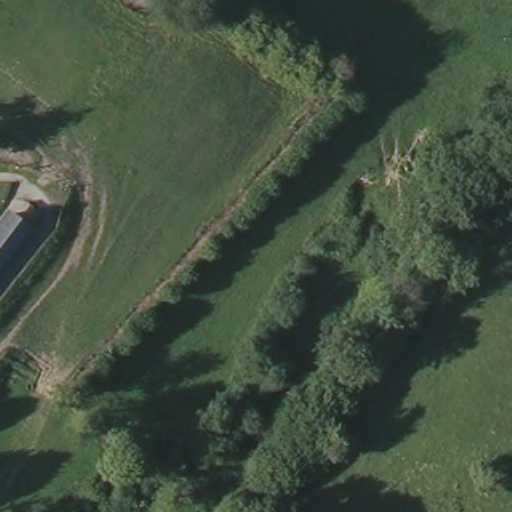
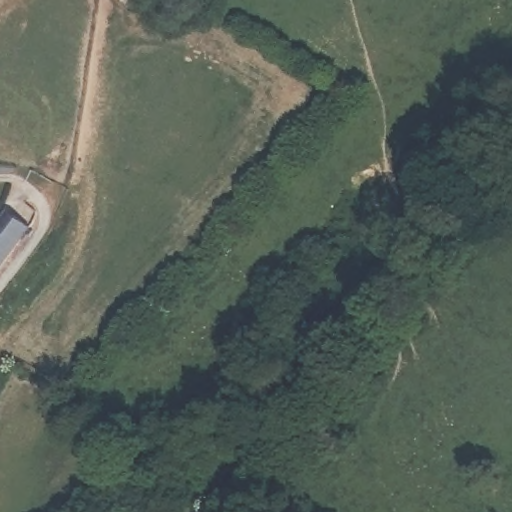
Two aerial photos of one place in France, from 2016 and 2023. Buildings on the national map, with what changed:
unchanged [(15,210),(33,226),(0,266),(0,228),(15,210)]

